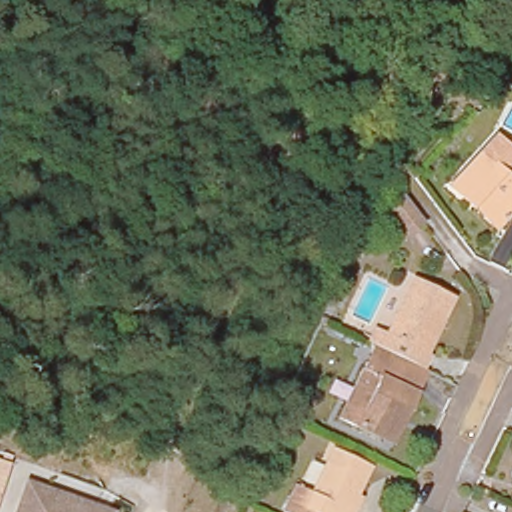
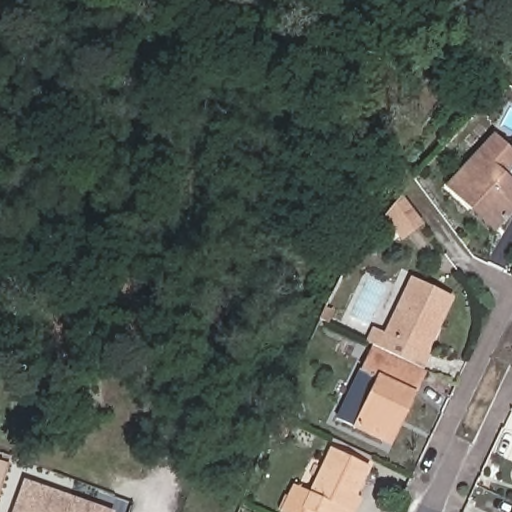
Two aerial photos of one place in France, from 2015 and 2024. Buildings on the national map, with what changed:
unchanged [(512,182),(512,195),(489,223),(443,184),(487,131),(510,151),(497,168),(512,182)]
unchanged [(415,221),(396,235),(378,213),(394,194),(415,221)]
unchanged [(374,330),(383,334),(406,280),(445,298),(419,352),(424,353),(416,369),(399,361),(382,354),(366,347),(374,330)]
unchanged [(382,354),(399,361),(416,369),(421,371),(389,444),(352,428),(377,377),(357,368),(366,347),(382,354)]
unchanged [(328,452),(367,469),(346,512),(289,512),(298,494),(309,499),(328,452)]
unchanged [(0,480),(0,475),(1,476),(0,480)]
unchanged [(16,496),(21,481),(38,487),(40,488),(63,495),(86,503),(83,512),(10,512),(16,496)]
unchanged [(91,504),(105,509),(104,512),(83,512),(86,503),(91,504)]

